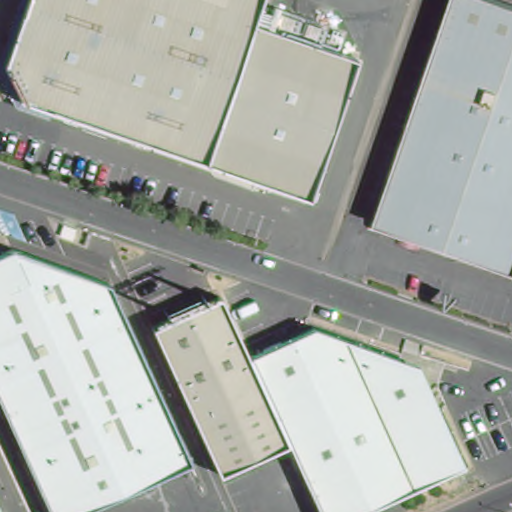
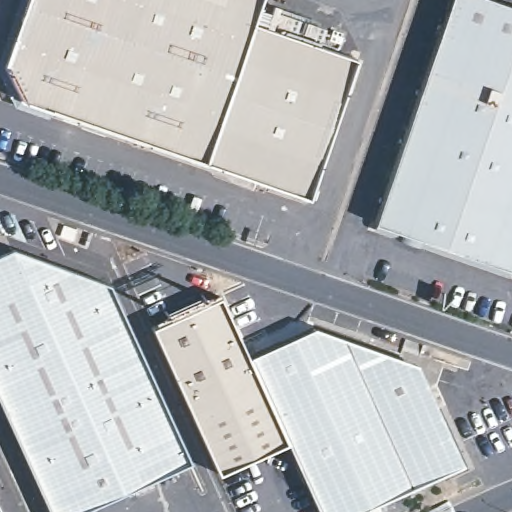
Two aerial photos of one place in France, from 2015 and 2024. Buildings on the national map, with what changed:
unchanged [(249,20),(253,22),(201,162),(48,107),(0,89),(0,84),(17,31),(28,0),(256,0),(249,20)]
unchanged [(512,2),(512,266),(376,219),(455,0),(505,0),(512,2)]
unchanged [(305,200),(201,162),(253,22),(354,60),(305,200)]
unchanged [(197,460),(86,512),(57,512),(0,390),(0,260),(17,252),(118,287),(197,460)]
unchanged [(154,328),(224,295),(252,356),(290,441),(220,472),(154,328)]
unchanged [(322,512),(290,441),(252,356),(314,329),(393,355),(413,362),(420,377),(458,462),(348,512),(322,512)]

